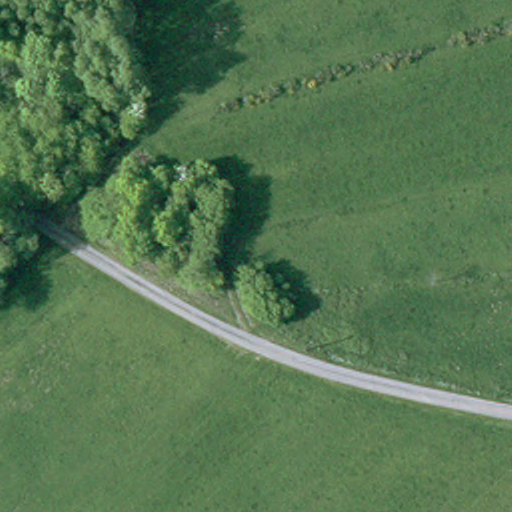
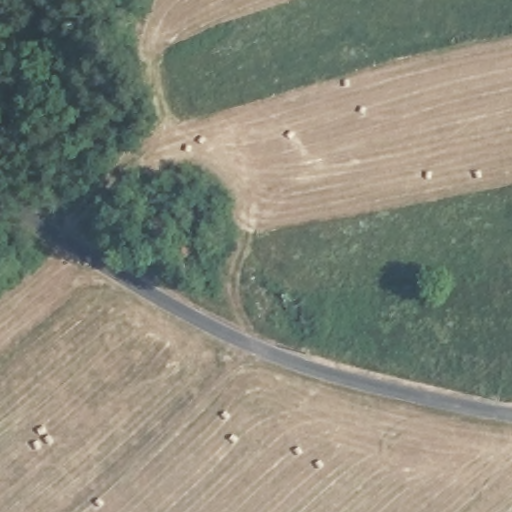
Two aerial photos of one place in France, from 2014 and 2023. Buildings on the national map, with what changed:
unchanged [(62,170),(60,164),(54,166),(49,152),(70,145),(77,166),(62,170)]

